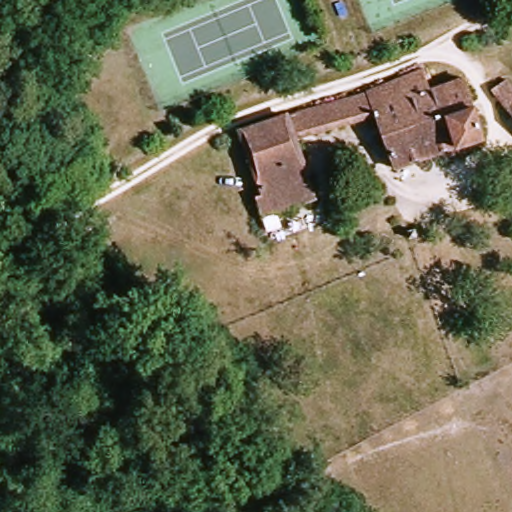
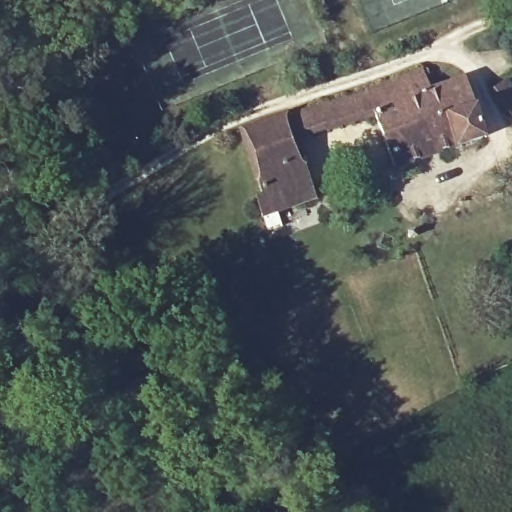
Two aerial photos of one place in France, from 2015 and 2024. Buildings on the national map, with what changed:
unchanged [(467,83),(483,138),(396,169),(380,123),(370,92),(372,91),(424,69),(434,94),(467,83)]
unchanged [(509,83),(512,87),(512,116),(495,94),(509,83)]
unchanged [(370,92),(380,123),(297,141),(290,119),(370,92)]
unchanged [(286,120),(290,119),(297,141),(317,199),(277,212),(281,225),(269,229),(260,199),(268,197),(246,135),(286,120)]

